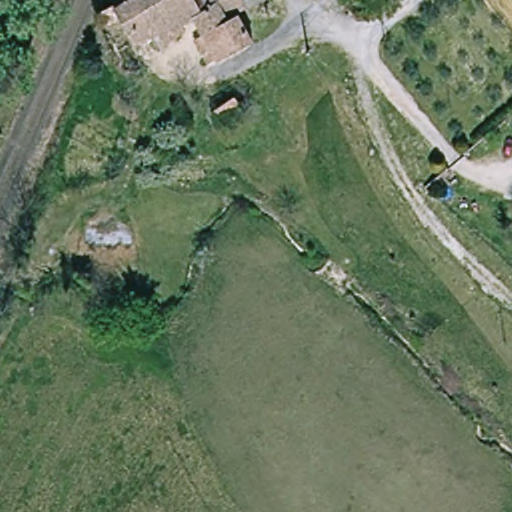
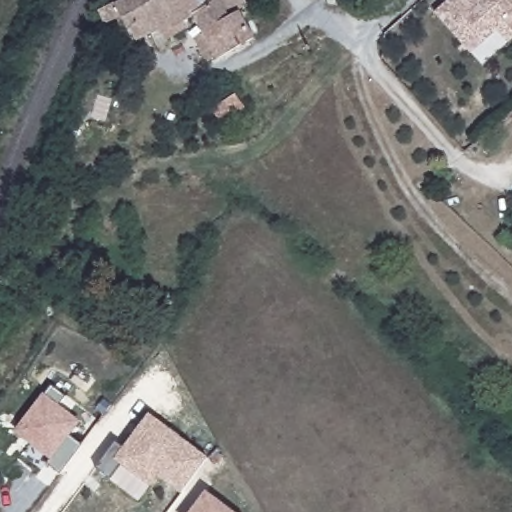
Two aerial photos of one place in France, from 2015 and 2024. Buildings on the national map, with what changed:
unchanged [(174,41),(171,34),(168,30),(146,42),(141,30),(139,32),(131,18),(116,25),(107,9),(123,3),(122,1),(120,0),(255,0),(257,4),(247,10),(262,37),(227,56),(227,55),(218,60),(206,37),(214,33),(204,15),(194,21),(197,28),(174,41)]
unchanged [(257,4),(255,0),(266,0),(257,4)]
new [(434,14),(450,0),(470,0),(473,2),(475,0),(512,0),(512,39),(508,42),(497,30),(481,43),(470,54),(460,43),(434,14)]
unchanged [(250,109),(226,123),(217,108),(240,93),(250,109)]
new [(18,427),(54,382),(69,393),(61,404),(81,419),(71,432),(85,443),(78,452),(62,472),(49,461),(53,455),(18,427)]
new [(116,442),(124,448),(150,415),(208,459),(182,494),(158,476),(150,485),(122,464),(110,480),(95,469),(116,442)]
new [(228,512),(192,512),(205,495),(228,512)]

